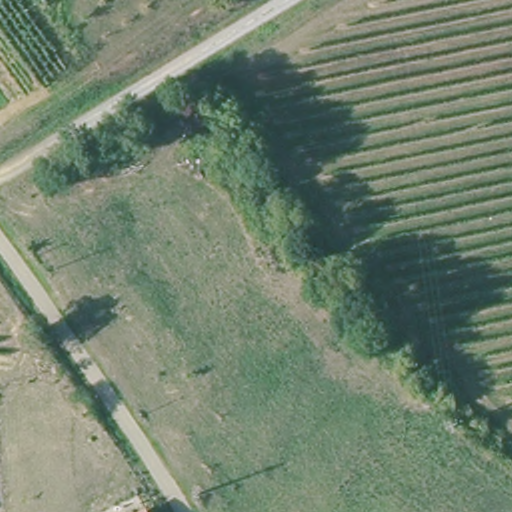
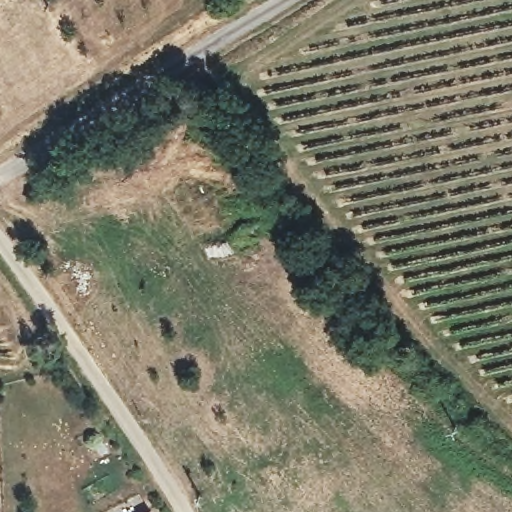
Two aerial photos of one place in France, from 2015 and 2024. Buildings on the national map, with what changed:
unchanged [(151,512),(145,512),(150,509),(151,512)]

